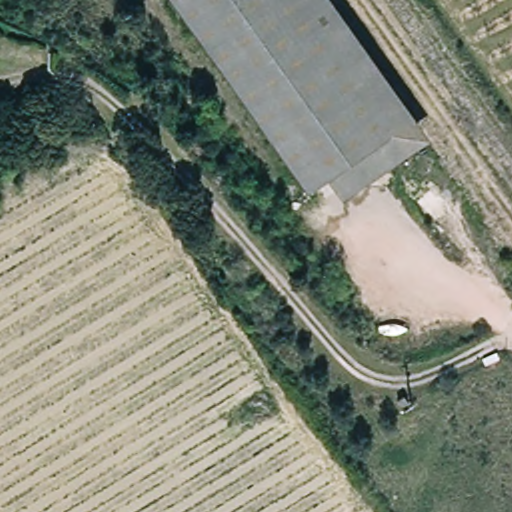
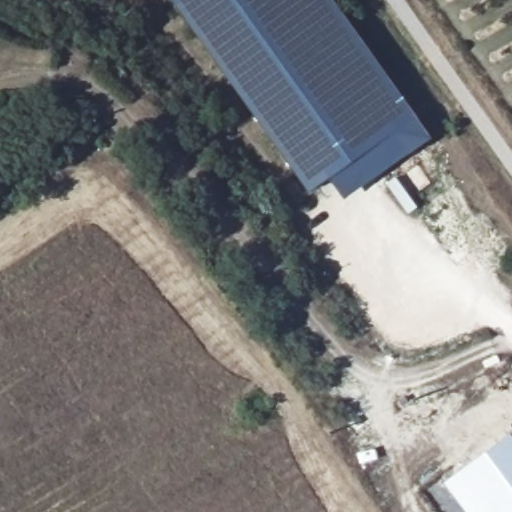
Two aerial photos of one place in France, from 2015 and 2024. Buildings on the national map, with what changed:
unchanged [(315,189),(266,121),(176,0),(313,0),(404,127),(336,173),(315,189)]
unchanged [(377,66),(429,139),(393,164),(351,194),(336,173),(404,127),(313,0),(329,0),(377,66)]
new [(510,433),(512,435),(512,512),(465,512),(443,483),(510,433)]

